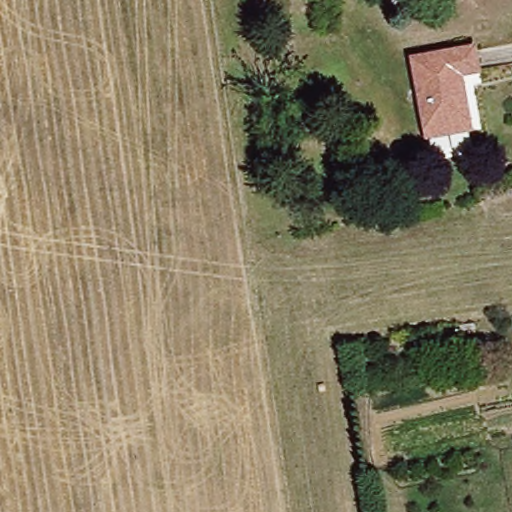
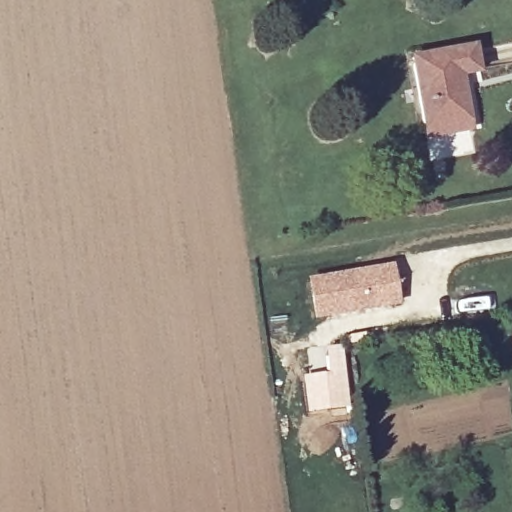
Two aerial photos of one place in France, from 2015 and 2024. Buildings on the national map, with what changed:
unchanged [(436,141),(434,127),(421,51),(483,43),(487,69),(475,71),(480,121),(482,136),(436,141)]
new [(393,262),(402,303),(314,319),(305,278),(393,262)]
new [(492,295),(493,310),(454,316),(452,300),(492,295)]
new [(310,372),(307,348),(341,344),(350,407),(306,413),(301,374),(310,372)]

